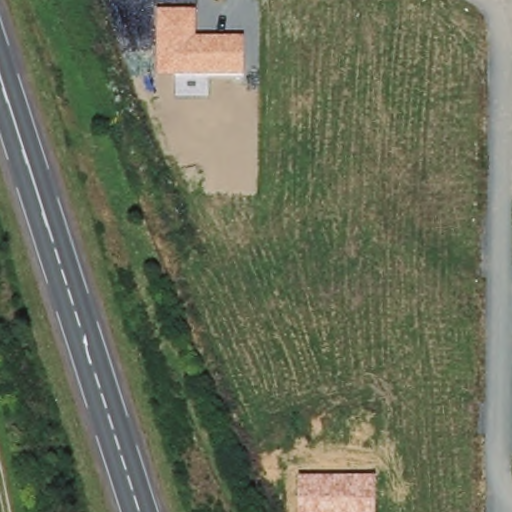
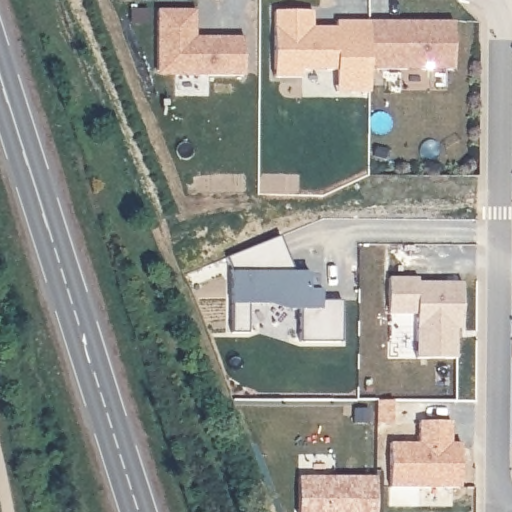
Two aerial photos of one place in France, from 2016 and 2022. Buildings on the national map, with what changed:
unchanged [(158,74),(158,10),(197,10),(196,37),(244,37),(244,76),(158,74)]
new [(311,71),(311,79),(283,78),(284,12),(321,12),(321,29),(345,29),(345,22),(378,23),(378,71),(378,94),(359,94),(344,94),(345,72),(311,71)]
new [(378,23),(378,22),(463,23),(462,72),(378,71),(378,23)]
new [(323,291),(323,301),(344,301),(344,343),(302,342),(302,309),(290,308),(289,296),(272,296),(272,304),(234,303),(235,273),(228,257),(282,236),(297,273),(311,272),(323,291)]
new [(416,357),(417,313),(389,312),(389,277),(419,277),(419,282),(462,282),(462,328),(456,328),(456,358),(416,357)]
new [(289,296),(290,308),(272,304),(271,296),(289,296)]
new [(251,303),(251,333),(234,333),(234,303),(251,303)]
new [(390,487),(391,442),(419,442),(419,421),(451,421),(451,442),(460,442),(460,487),(390,487)]
unchanged [(299,475),(376,477),(376,512),(299,512),(299,475)]

